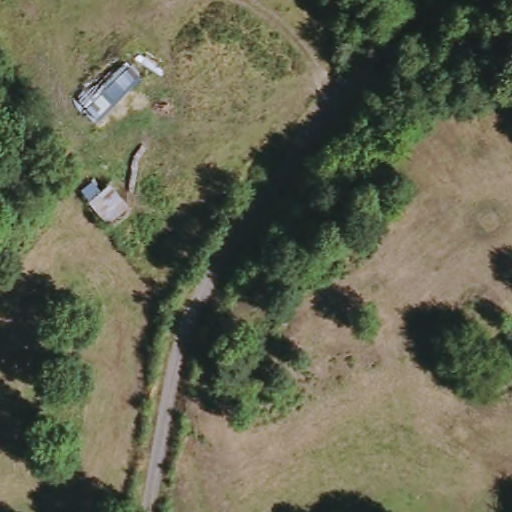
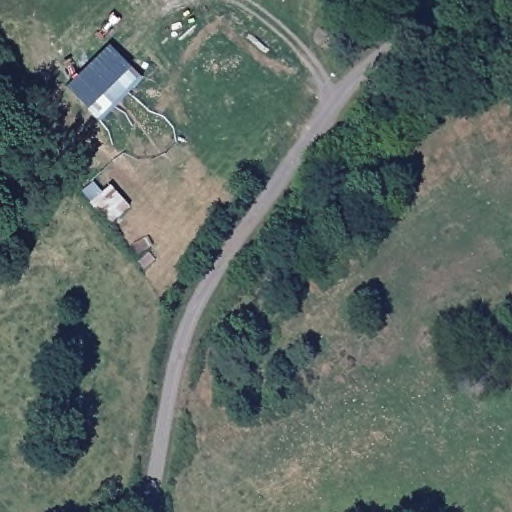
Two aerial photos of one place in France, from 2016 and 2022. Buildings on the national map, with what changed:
new [(141,79),(97,121),(65,85),(106,43),(141,79)]
unchanged [(95,200),(88,192),(100,182),(105,190),(115,182),(136,207),(115,229),(91,205),(95,200)]

